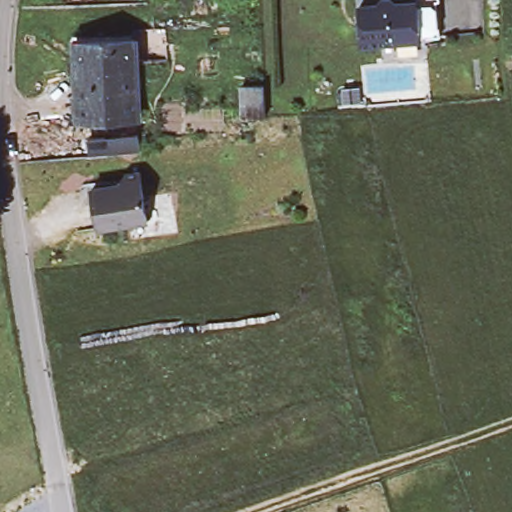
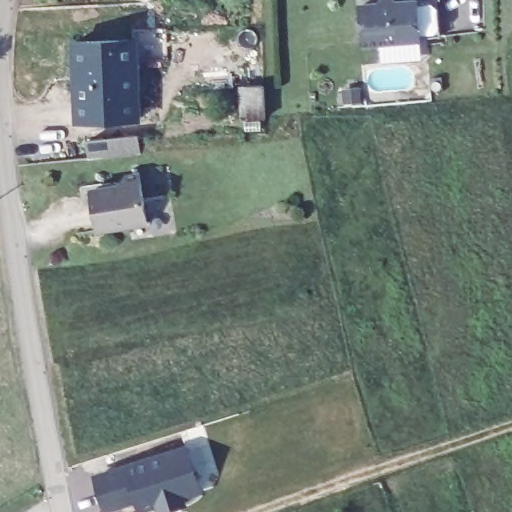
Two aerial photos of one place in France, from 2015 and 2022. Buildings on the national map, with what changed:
unchanged [(353,49),(352,36),(350,11),(368,9),(373,4),(381,3),(386,8),(407,6),(407,0),(421,0),(421,1),(431,0),(431,6),(428,6),(430,31),(430,43),(410,45),(353,49)]
unchanged [(137,120),(79,121),(78,49),(78,41),(136,41),(136,47),(137,120)]
unchanged [(266,86),(267,118),(244,119),(243,86),(266,86)]
unchanged [(139,136),(141,155),(90,161),(88,143),(139,136)]
unchanged [(119,187),(127,176),(141,174),(149,223),(99,231),(92,191),(119,187)]
new [(217,439),(198,444),(193,428),(212,422),(217,439)]
new [(209,489),(192,494),(194,502),(170,509),(168,502),(150,508),(146,497),(115,507),(105,472),(198,444),(209,489)]

